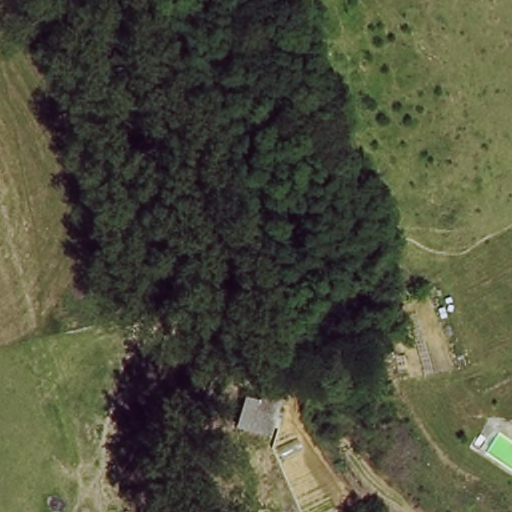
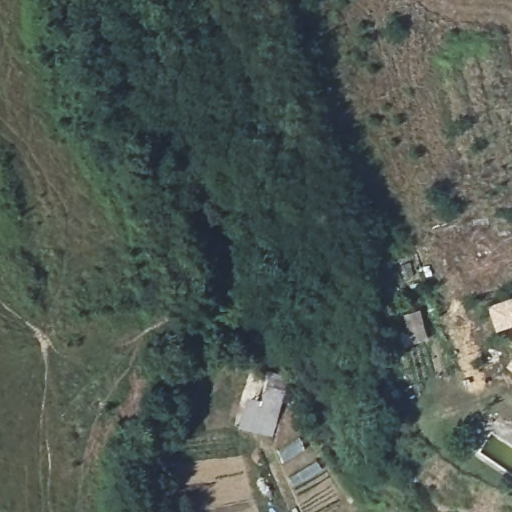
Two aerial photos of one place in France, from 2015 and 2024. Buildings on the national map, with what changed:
new [(512,297),(512,327),(511,324),(496,332),(487,307),(512,297)]
new [(504,364),(512,353),(512,371),(504,364)]
unchanged [(259,404),(261,391),(279,395),(269,441),(239,434),(246,401),(259,404)]

